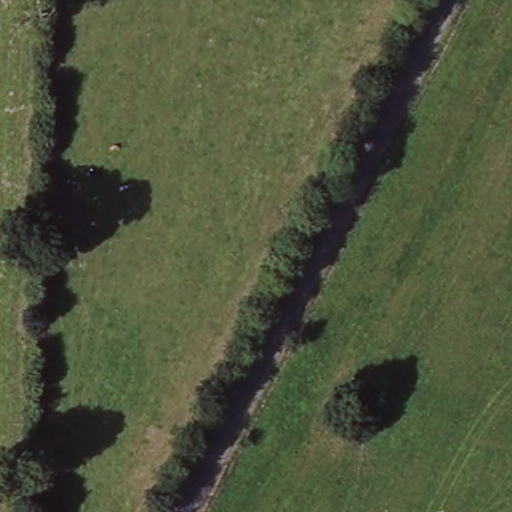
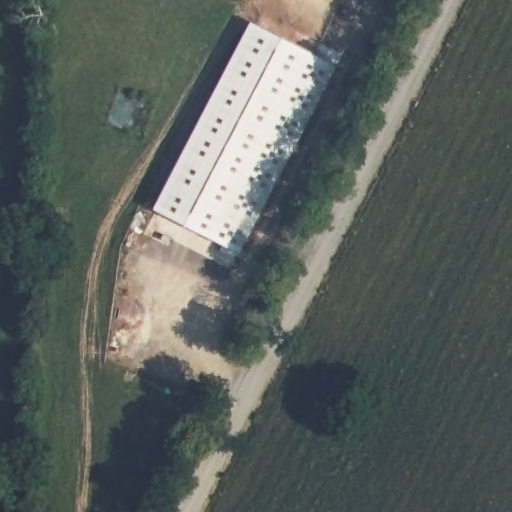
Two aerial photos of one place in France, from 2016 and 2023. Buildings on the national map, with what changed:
new [(251,19),(336,62),(240,251),(237,249),(234,255),(221,247),(223,242),(154,207),(251,19)]

